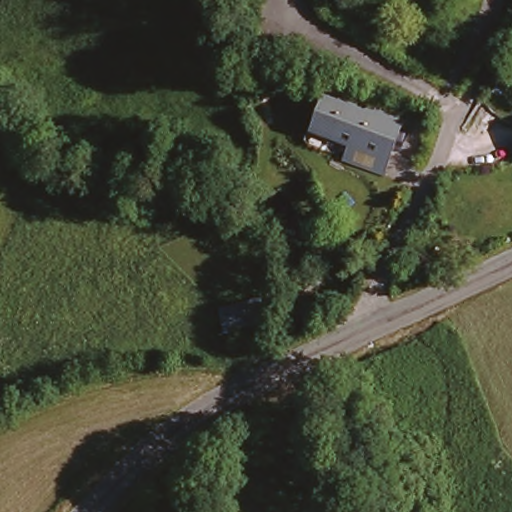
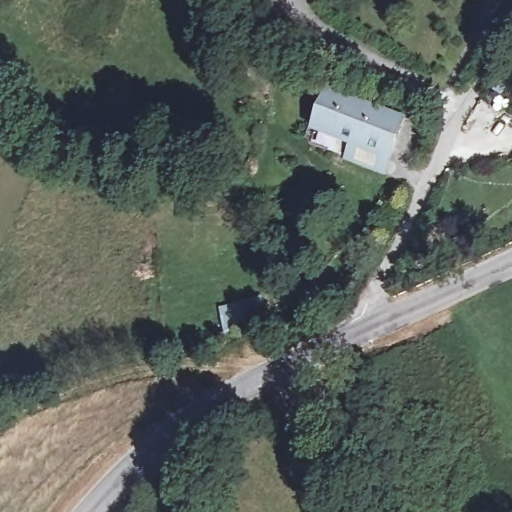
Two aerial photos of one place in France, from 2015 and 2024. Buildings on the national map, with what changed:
unchanged [(350,163),(357,145),(323,132),(337,96),(409,124),(395,159),(389,177),(350,163)]

